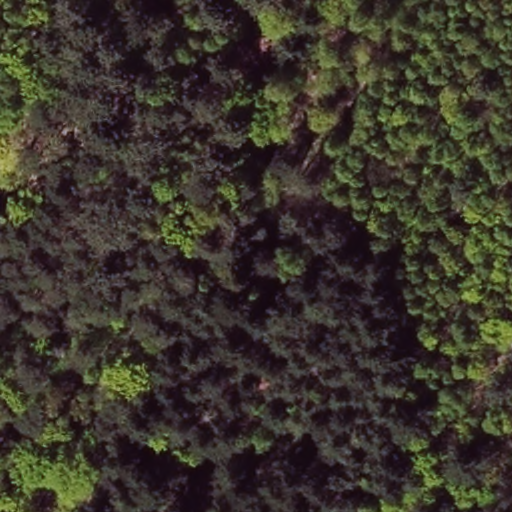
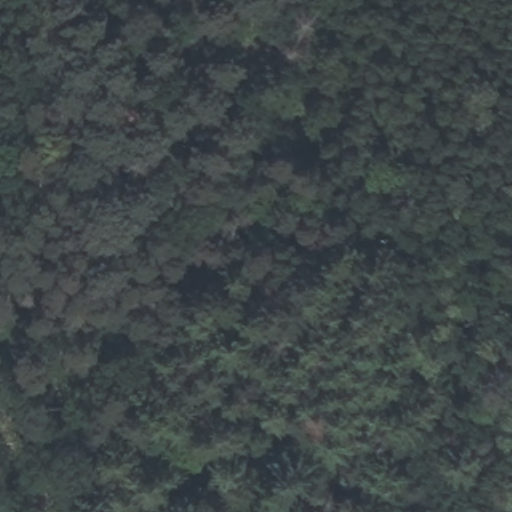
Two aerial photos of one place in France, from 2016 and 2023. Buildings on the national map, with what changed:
[]

